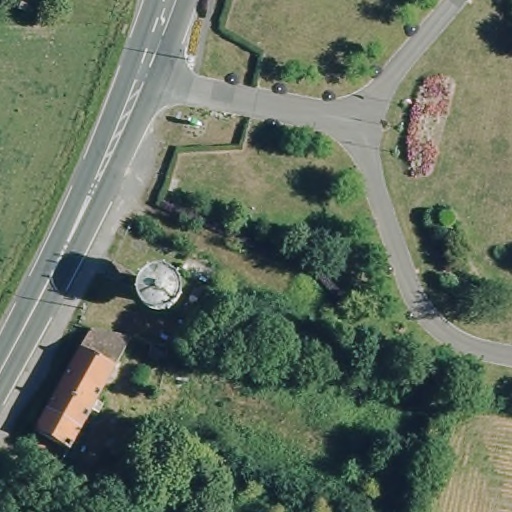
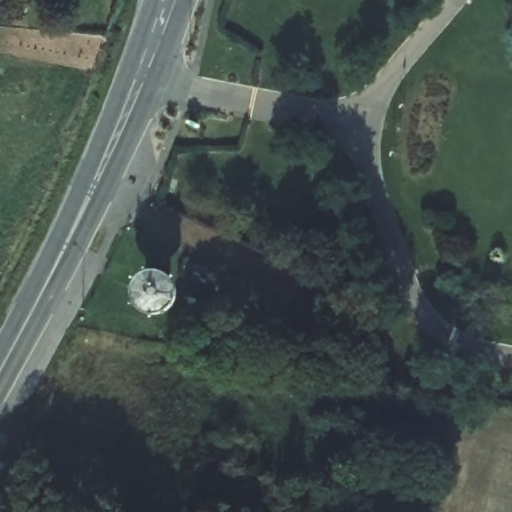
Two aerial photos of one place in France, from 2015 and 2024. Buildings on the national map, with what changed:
unchanged [(28,7),(25,14),(18,10),(20,4),(28,7)]
demolished [(131,338),(60,465),(26,446),(91,330),(131,338)]

